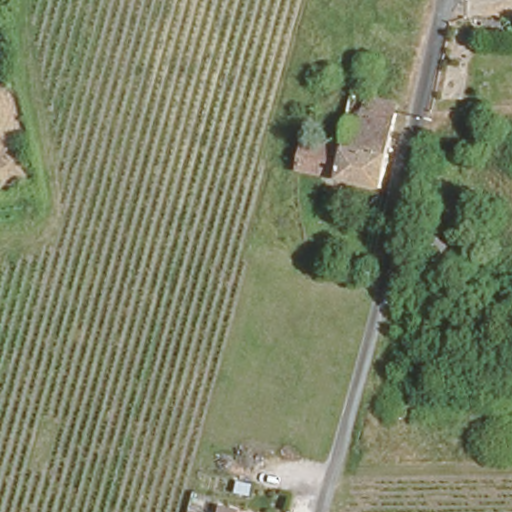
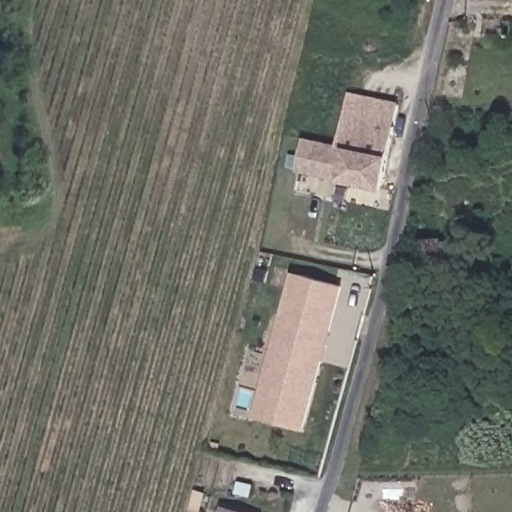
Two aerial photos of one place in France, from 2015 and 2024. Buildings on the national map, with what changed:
unchanged [(344,118),(348,97),(393,105),(389,126),(344,118)]
unchanged [(389,126),(378,187),(293,171),(298,142),(338,150),(344,118),(389,126)]
unchanged [(424,242),(453,242),(454,272),(424,272),(424,242)]
new [(338,288),(298,432),(248,417),(287,275),(338,288)]
unchanged [(217,512),(219,505),(250,512),(217,512)]

